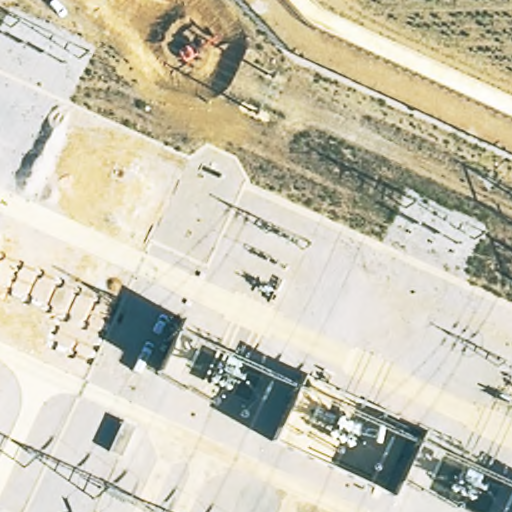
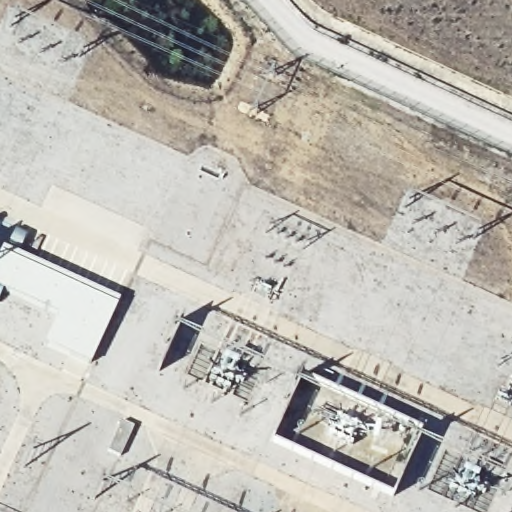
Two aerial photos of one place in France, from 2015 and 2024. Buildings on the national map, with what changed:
new [(6,250),(15,254),(92,290),(119,300),(90,366),(42,343),(55,316),(0,289),(0,259),(6,250)]

